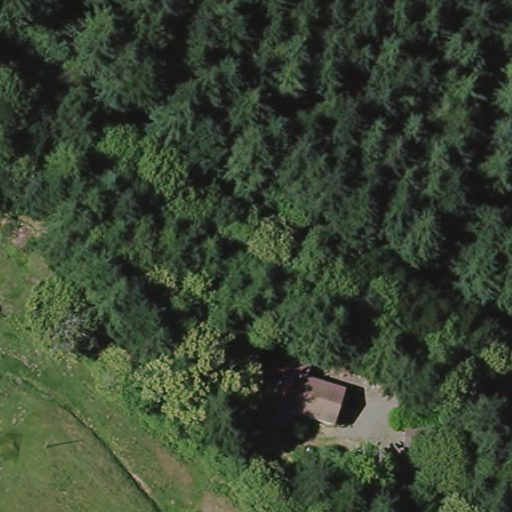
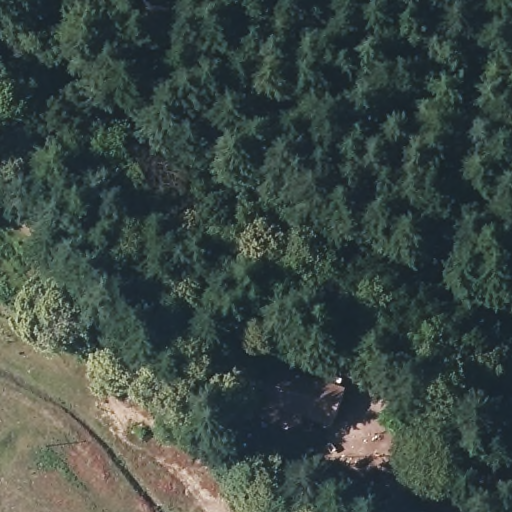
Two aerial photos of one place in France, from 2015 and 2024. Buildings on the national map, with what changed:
unchanged [(285,419),(281,433),(255,427),(275,353),(314,365),(307,381),(346,397),(335,430),(285,419)]
unchanged [(399,463),(399,430),(469,432),(469,462),(399,463)]

